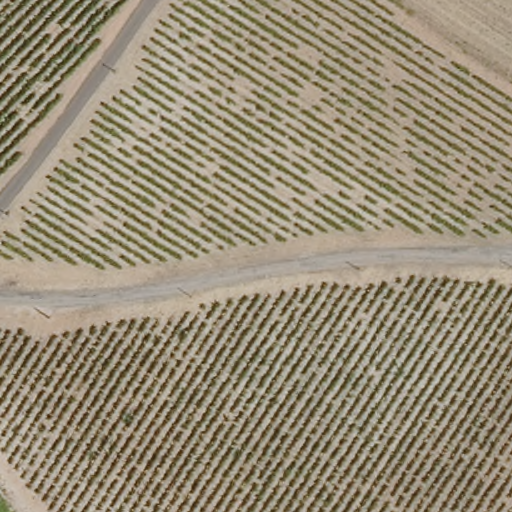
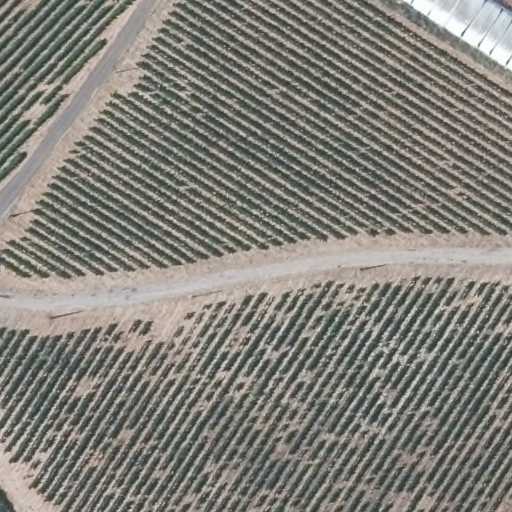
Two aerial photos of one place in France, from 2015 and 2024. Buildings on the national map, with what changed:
new [(402,0),(482,0),(512,19),(512,71),(402,0)]

